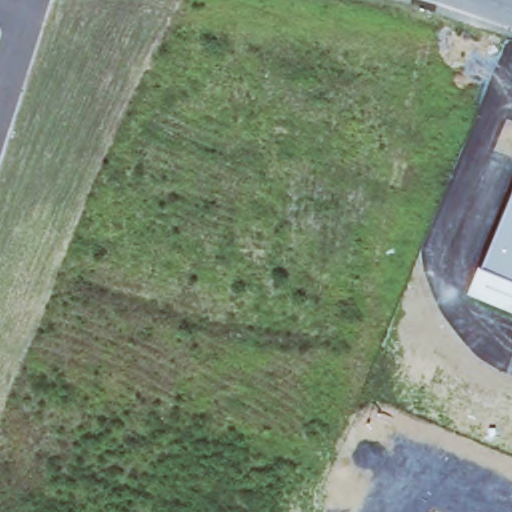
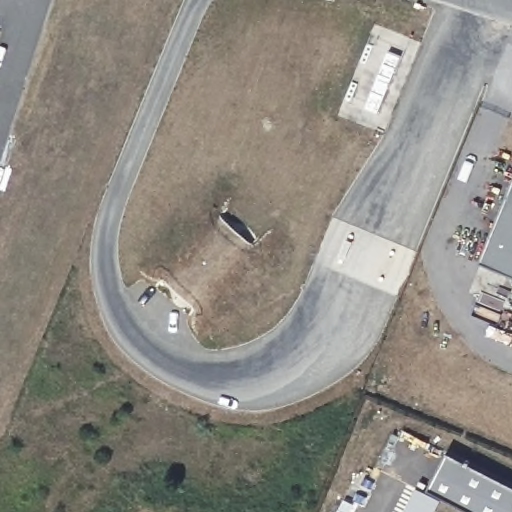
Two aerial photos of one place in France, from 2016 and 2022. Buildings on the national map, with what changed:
unchanged [(512,277),(480,264),(512,189),(512,277)]
new [(458,456),(512,485),(512,512),(472,512),(438,494),(458,456)]
new [(452,503),(448,512),(418,512),(421,506),(428,491),(452,503)]

